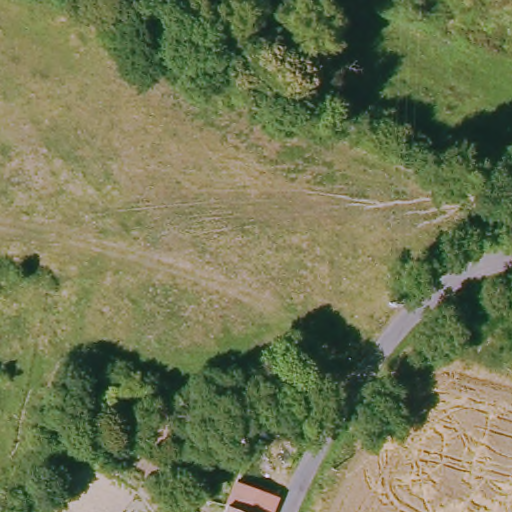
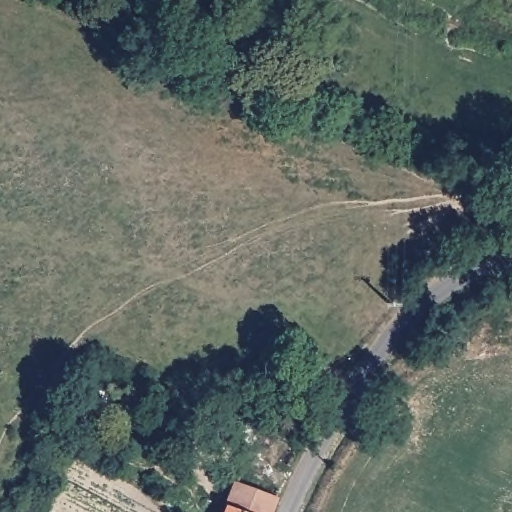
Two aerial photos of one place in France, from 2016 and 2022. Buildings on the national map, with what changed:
unchanged [(224,506),(235,480),(275,494),(268,512),(240,512),(224,506)]
unchanged [(224,506),(240,512),(222,512),(224,506)]

